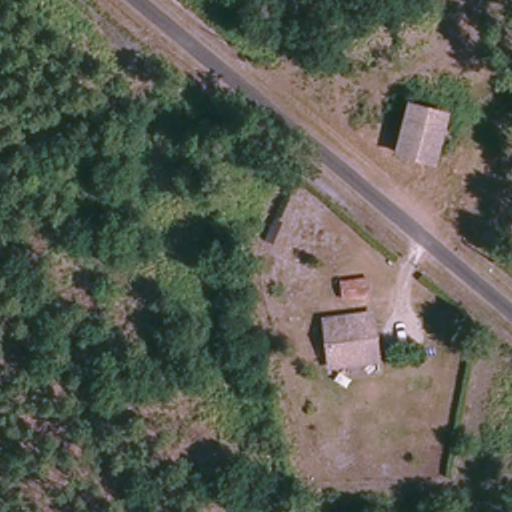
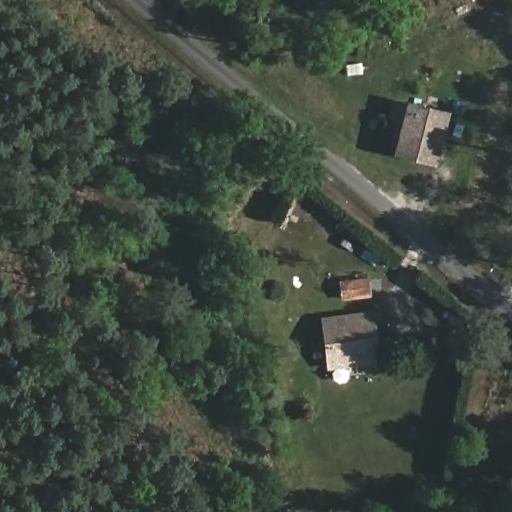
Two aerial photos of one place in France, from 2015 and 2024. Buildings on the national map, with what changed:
unchanged [(446,116),(433,162),(395,153),(407,109),(436,115),(446,116)]
unchanged [(366,279),(367,297),(341,296),(341,278),(366,279)]
unchanged [(323,363),(326,315),(376,315),(377,365),(323,363)]

